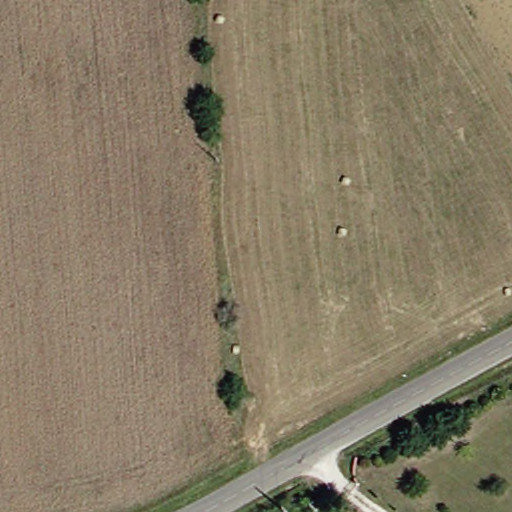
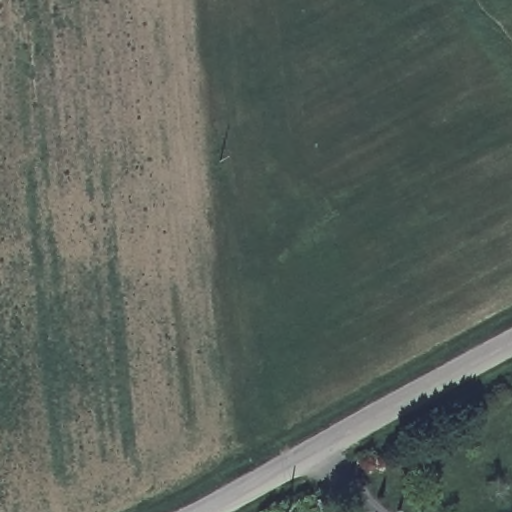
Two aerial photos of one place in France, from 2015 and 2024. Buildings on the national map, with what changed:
[]

